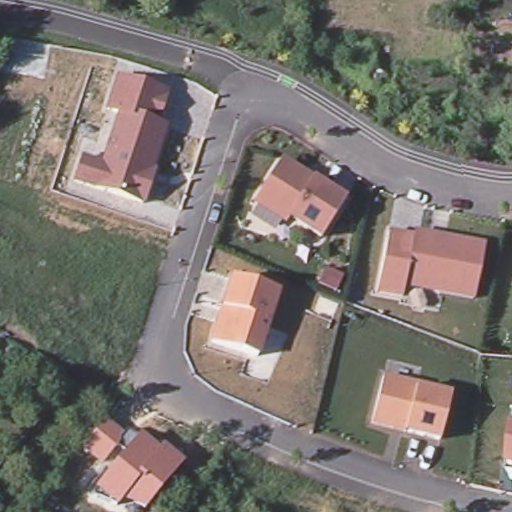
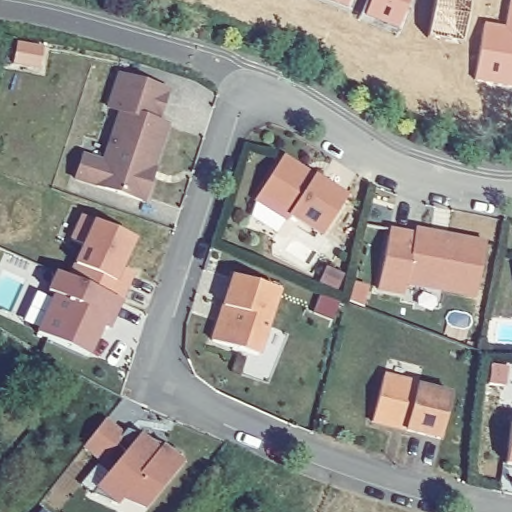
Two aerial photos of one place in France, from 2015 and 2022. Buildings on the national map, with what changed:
new [(338,0),(351,0),(350,5),(338,0)]
new [(368,14),(374,0),(409,0),(400,26),(368,14)]
new [(431,35),(437,0),(473,0),(466,39),(431,35)]
new [(511,0),(512,0),(512,84),(477,79),(487,24),(507,28),(511,0)]
new [(18,46),(43,51),(39,70),(15,66),(18,46)]
unchanged [(159,123),(164,124),(152,170),(156,171),(146,205),(76,182),(84,153),(103,160),(118,113),(108,109),(118,72),(168,91),(159,123)]
unchanged [(281,165),(288,163),(301,171),(301,178),(312,185),(315,181),(348,202),(324,239),(291,219),(288,224),(256,203),(281,165)]
new [(94,222),(136,240),(122,270),(134,276),(123,303),(109,331),(103,328),(90,358),(36,333),(53,293),(46,291),(56,272),(68,278),(74,263),(83,244),(69,239),(81,214),(94,222)]
unchanged [(391,234),(416,239),(421,235),(431,237),(435,243),(447,245),(448,240),(487,248),(476,301),(407,287),(404,298),(379,293),(391,234)]
unchanged [(262,357),(209,341),(231,275),(280,292),(262,357)]
unchanged [(384,380),(419,388),(419,391),(452,399),(441,443),(407,434),(408,429),(397,426),(396,431),(373,426),(384,380)]
unchanged [(126,434),(128,431),(136,436),(138,432),(163,448),(166,445),(186,460),(144,512),(143,512),(124,501),(115,511),(92,490),(120,454),(116,450),(100,468),(78,450),(103,419),(126,434)]
unchanged [(507,468),(511,426),(512,426),(512,469),(507,468)]

